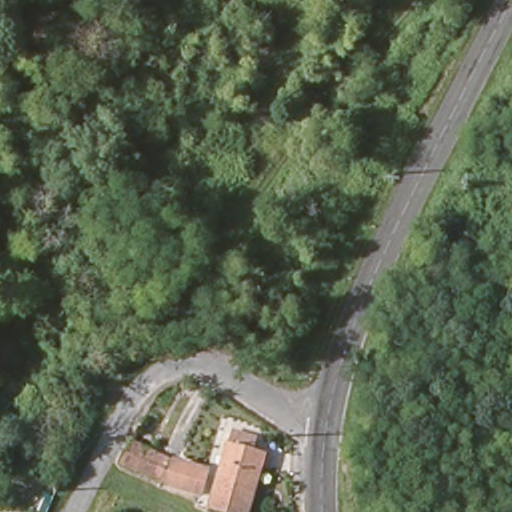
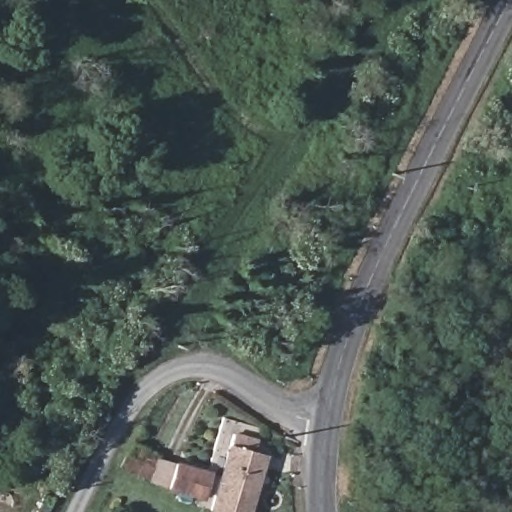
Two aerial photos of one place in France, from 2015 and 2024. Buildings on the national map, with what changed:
unchanged [(233,433),(257,440),(253,453),(264,457),(261,466),(248,512),(224,512),(211,508),(233,433)]
unchanged [(130,443),(170,462),(169,463),(201,478),(191,502),(118,468),(130,443)]

